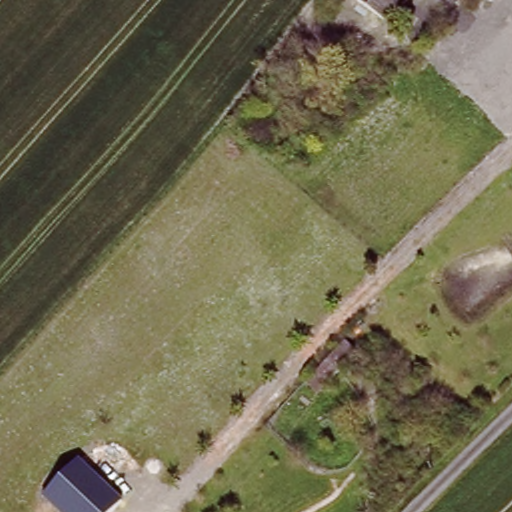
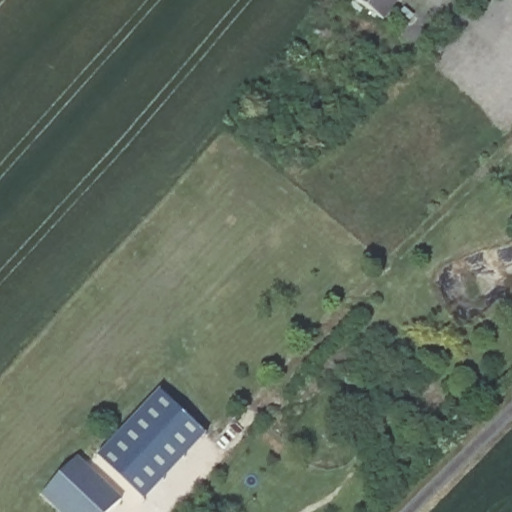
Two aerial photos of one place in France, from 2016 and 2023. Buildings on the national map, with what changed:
unchanged [(347,0),(398,0),(383,23),(347,0)]
new [(159,391),(207,435),(146,502),(99,457),(159,391)]
unchanged [(79,457),(125,497),(111,512),(58,512),(42,497),(79,457)]

